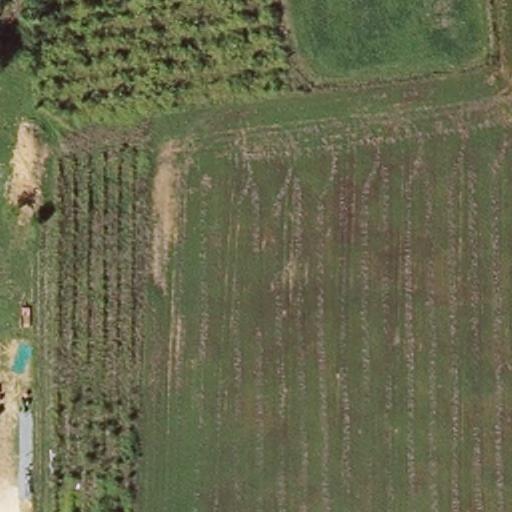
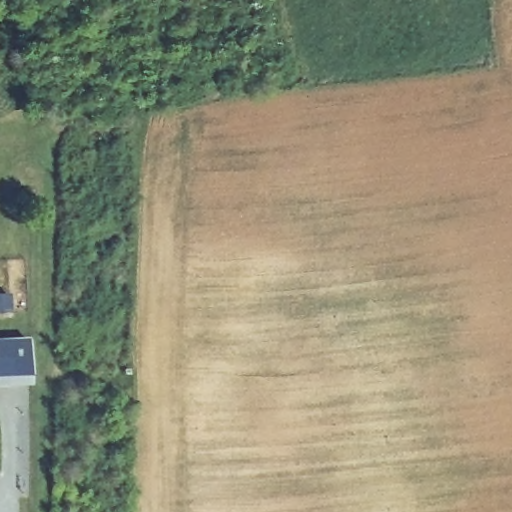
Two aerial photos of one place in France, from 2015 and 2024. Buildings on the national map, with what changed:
new [(30,340),(31,379),(0,380),(0,341),(30,340)]

